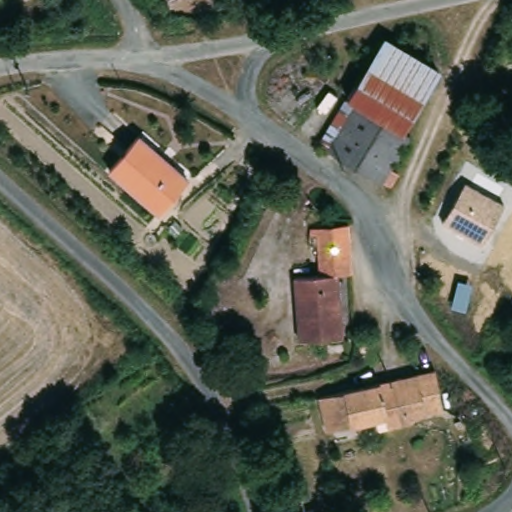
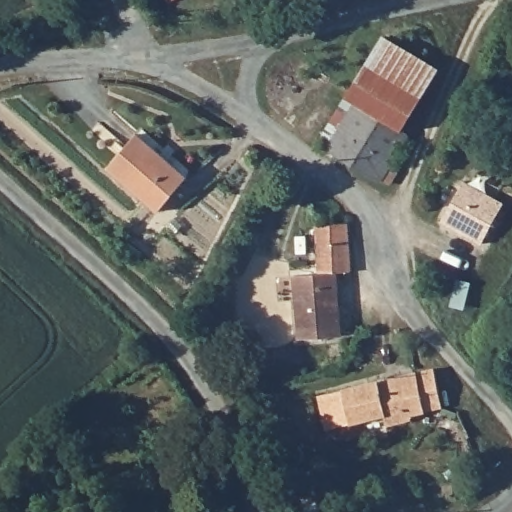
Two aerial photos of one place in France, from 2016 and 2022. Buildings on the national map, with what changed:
unchanged [(188,0),(172,9),(167,0),(188,0)]
unchanged [(386,36),(430,63),(419,92),(370,64),(386,36)]
unchanged [(362,77),(370,64),(419,92),(424,95),(410,117),(410,118),(404,128),(357,100),(351,96),(362,77)]
unchanged [(331,145),(321,139),(347,96),(355,101),(357,100),(404,128),(406,129),(411,132),(392,165),(399,169),(392,182),(384,177),(383,181),(343,156),(329,148),(331,145)]
unchanged [(478,119),(492,128),(481,144),(467,135),(478,119)]
unchanged [(141,137),(191,179),(161,214),(111,171),(141,137)]
unchanged [(466,185),(505,207),(481,247),(444,224),(466,185)]
unchanged [(302,342),(298,301),(296,278),(321,275),(318,246),(312,247),(312,237),(312,229),(333,227),(350,226),(353,273),(339,274),(342,311),(344,338),(302,342)]
unchanged [(433,369),(436,368),(437,372),(446,405),(415,415),(416,418),(392,426),(389,417),(332,432),(324,404),(323,401),(433,369)]

